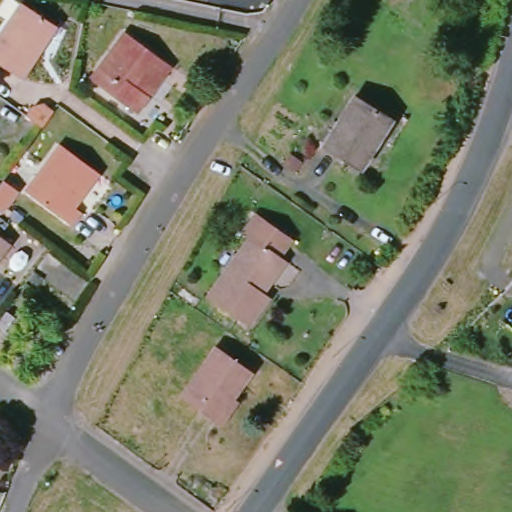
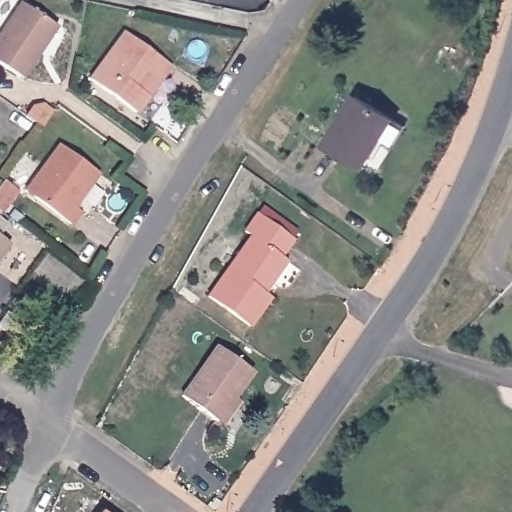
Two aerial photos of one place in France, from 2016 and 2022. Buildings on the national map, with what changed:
unchanged [(14,0),(46,22),(31,46),(36,50),(16,80),(0,69),(0,21),(13,0),(14,0)]
unchanged [(136,113),(92,80),(130,27),(173,61),(161,77),(148,96),(136,113)]
unchanged [(351,94),(388,118),(356,168),(318,144),(351,94)]
unchanged [(63,143),(104,174),(79,208),(85,213),(73,228),(28,193),(63,143)]
unchanged [(8,218),(0,212),(0,200),(11,185),(25,195),(8,218)]
unchanged [(305,254),(252,333),(206,300),(244,245),(240,237),(255,219),(305,254)]
unchanged [(0,254),(0,238),(7,244),(0,254)]
unchanged [(14,322),(5,336),(0,332),(0,324),(5,315),(14,322)]
unchanged [(211,348),(250,376),(214,426),(176,400),(211,348)]

